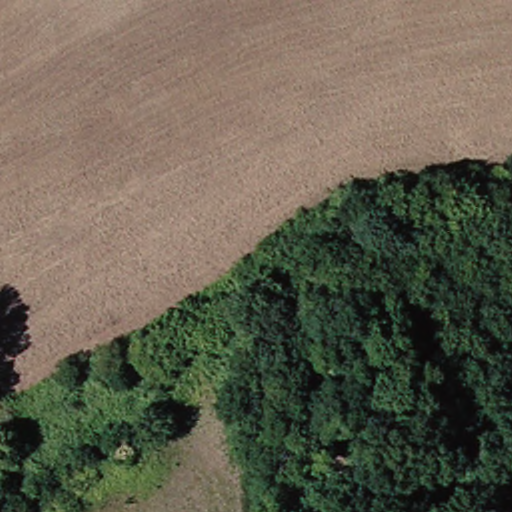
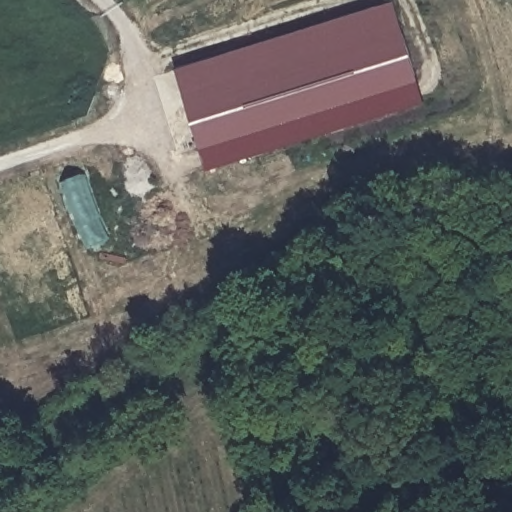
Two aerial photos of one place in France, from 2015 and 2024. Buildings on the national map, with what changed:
new [(392,3),(416,81),(200,149),(176,70),(392,3)]

